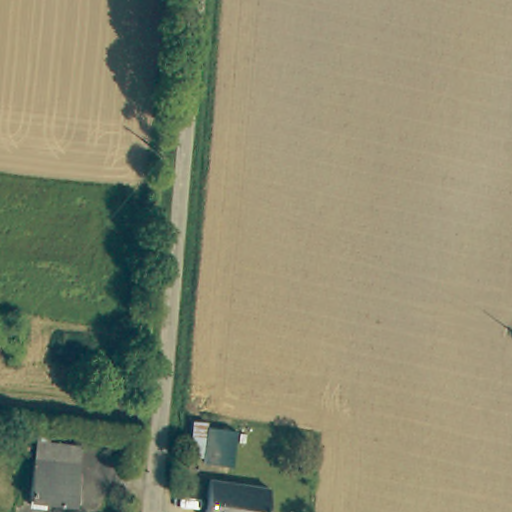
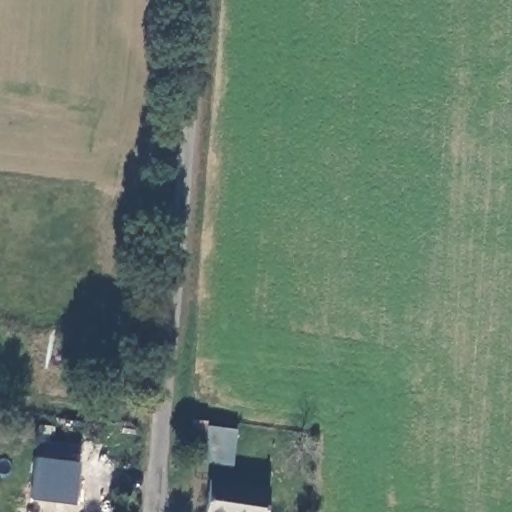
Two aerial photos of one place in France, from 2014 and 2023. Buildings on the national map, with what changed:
unchanged [(84,442),(79,498),(31,495),(36,436),(84,442)]
unchanged [(211,512),(215,480),(274,488),(272,512),(211,512)]

